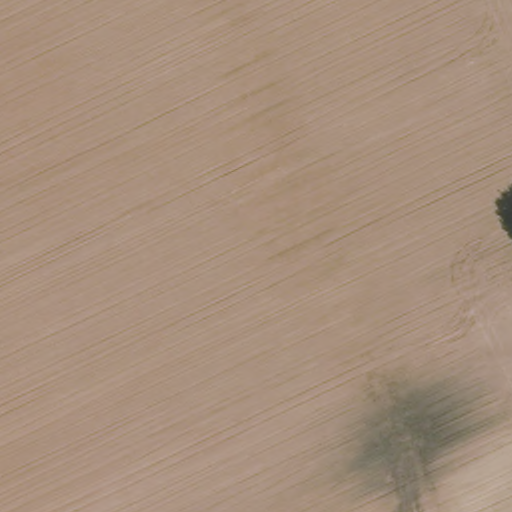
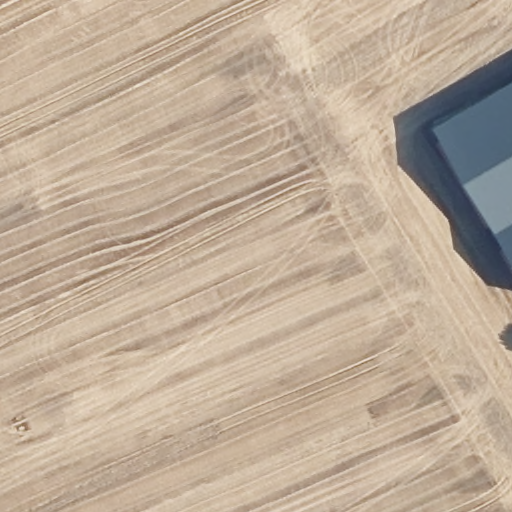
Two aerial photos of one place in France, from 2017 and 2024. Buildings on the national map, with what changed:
new [(512,253),(437,121),(512,79),(512,253)]

